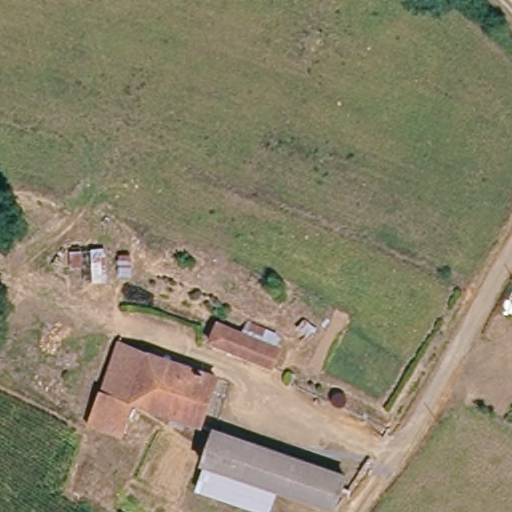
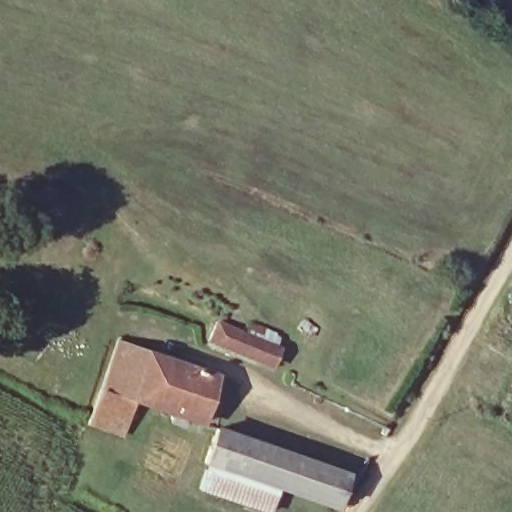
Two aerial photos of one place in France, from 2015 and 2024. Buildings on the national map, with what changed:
unchanged [(249,324),(270,332),(266,343),(275,347),(267,369),(210,345),(219,322),(245,333),(249,324)]
unchanged [(114,345),(146,356),(129,401),(98,390),(114,345)]
unchanged [(146,356),(213,379),(198,425),(129,401),(146,356)]
unchanged [(98,390),(129,401),(115,438),(115,439),(108,436),(86,427),(92,409),(98,390)]
unchanged [(219,432),(345,475),(334,510),(278,492),(208,468),(219,432)]
unchanged [(270,512),(262,512),(200,492),(208,468),(278,492),(270,512)]

